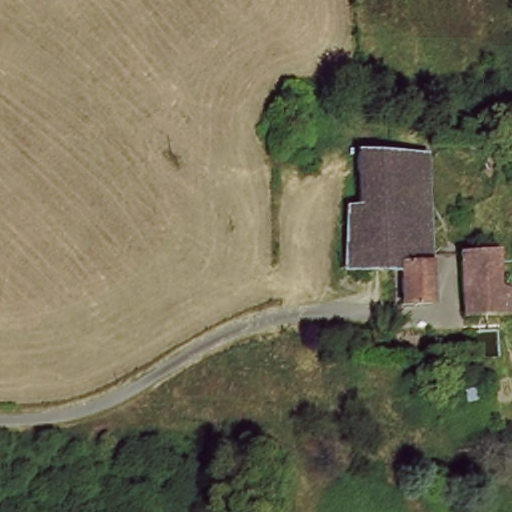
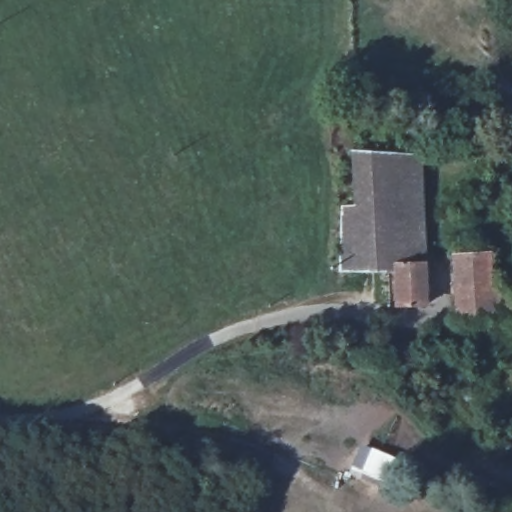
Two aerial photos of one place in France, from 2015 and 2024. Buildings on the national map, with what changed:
unchanged [(420,153),(420,213),(391,212),(388,154),(420,153)]
unchanged [(342,210),(353,210),(355,156),(388,154),(391,212),(420,213),(422,261),(389,264),(387,273),(341,268),(342,210)]
unchanged [(457,254),(492,253),(495,286),(512,295),(512,318),(460,319),(457,254)]
unchanged [(421,269),(423,309),(396,310),(395,269),(421,269)]

